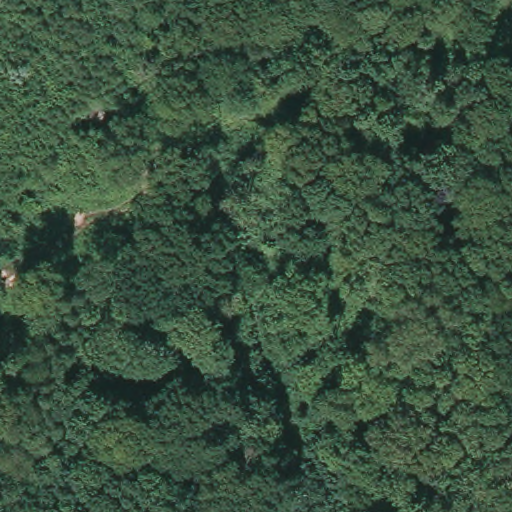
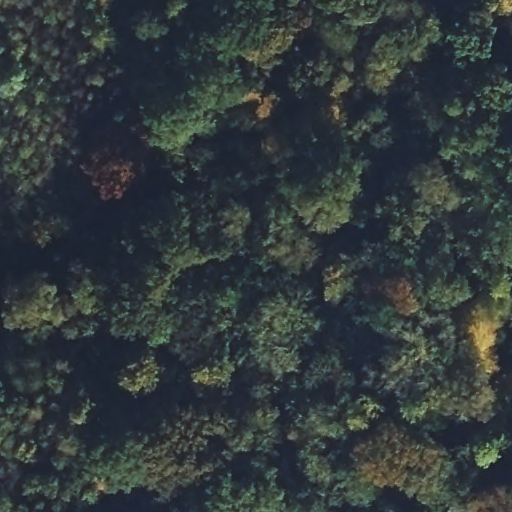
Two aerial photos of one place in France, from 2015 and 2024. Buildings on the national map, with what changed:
[]

